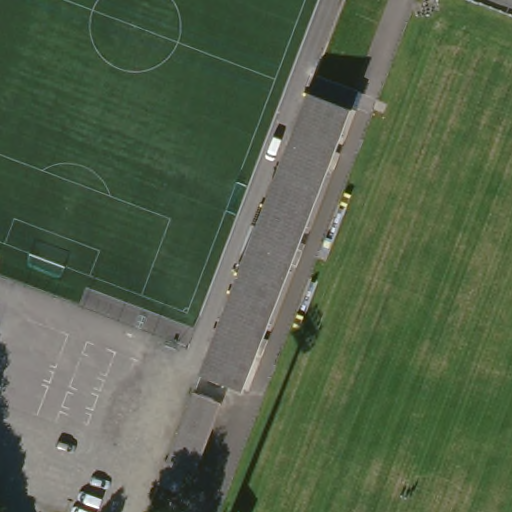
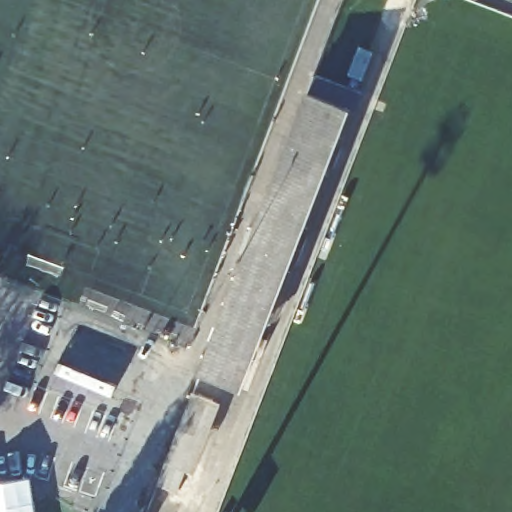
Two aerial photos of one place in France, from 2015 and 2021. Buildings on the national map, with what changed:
unchanged [(234,383),(210,374),(208,373),(317,91),(341,100),(234,383)]
unchanged [(358,107),(249,389),(234,383),(341,100),(358,107)]
unchanged [(234,396),(203,473),(177,465),(206,386),(234,396)]
new [(34,512),(0,512),(0,484),(29,479),(34,512)]

